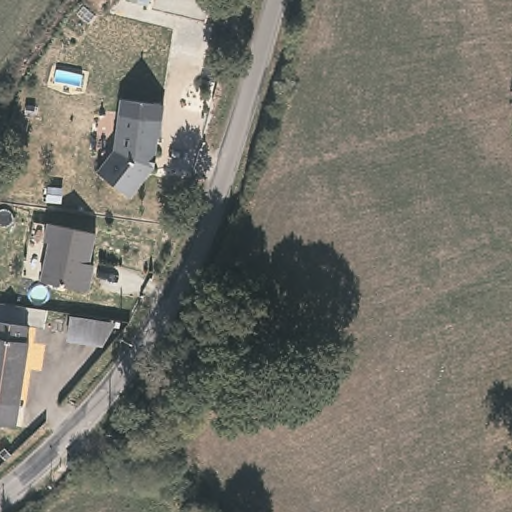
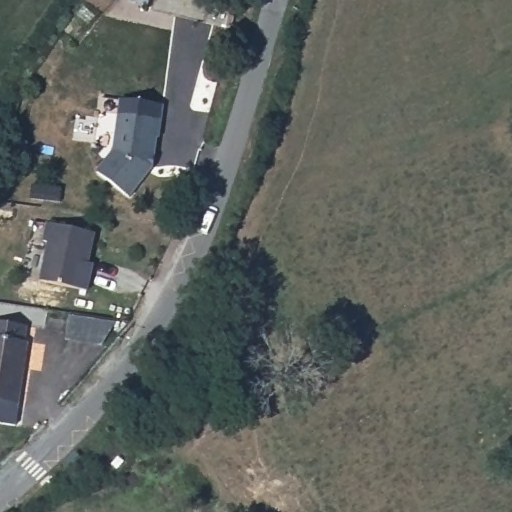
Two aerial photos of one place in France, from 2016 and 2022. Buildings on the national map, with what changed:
unchanged [(99,170),(118,145),(117,119),(159,117),(160,135),(158,135),(156,153),(154,153),(152,155),(151,161),(154,164),(131,194),(99,170)]
unchanged [(90,271),(85,292),(39,282),(47,244),(42,243),(45,225),(92,235),(86,265),(91,266),(90,271)]
unchanged [(113,325),(101,347),(66,341),(69,318),(113,325)]
unchanged [(27,323),(24,337),(29,338),(16,423),(0,421),(0,319),(27,323)]

